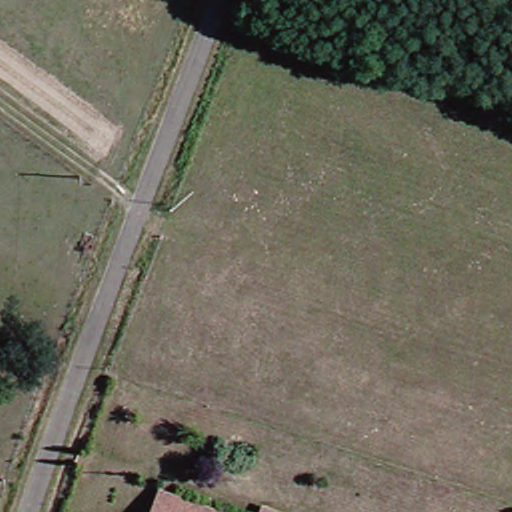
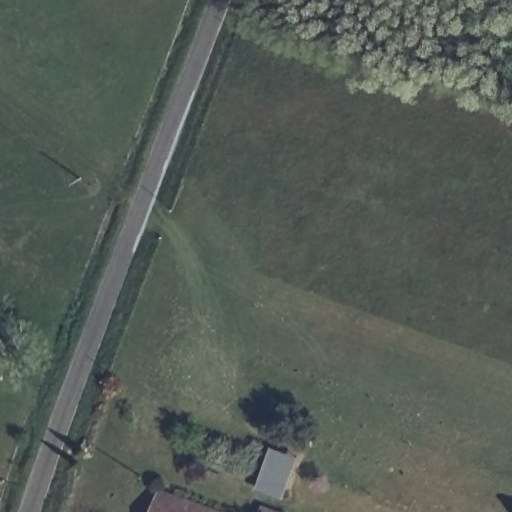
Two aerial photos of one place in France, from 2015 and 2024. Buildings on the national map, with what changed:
new [(270,444),(297,454),(281,498),(254,488),(270,444)]
unchanged [(151,494),(204,512),(145,512),(151,494)]

